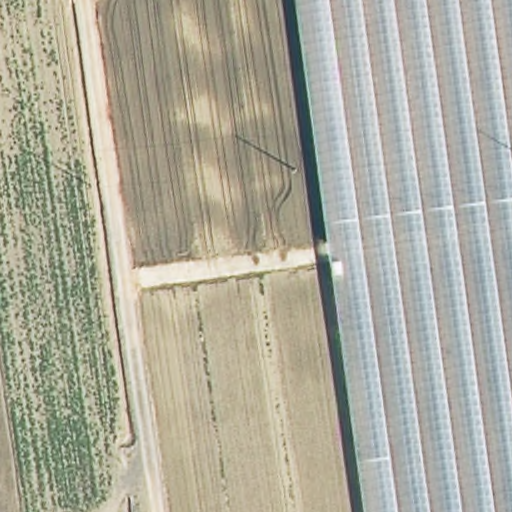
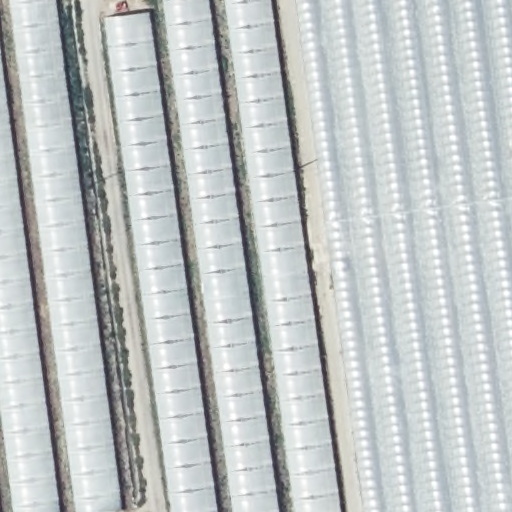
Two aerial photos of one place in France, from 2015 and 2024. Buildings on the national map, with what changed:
new [(120,511),(114,512),(0,512),(0,0),(57,0),(120,511)]
new [(177,512),(107,17),(160,8),(159,0),(268,0),(339,512),(177,512)]
unchanged [(512,512),(364,512),(295,0),(512,0),(512,512)]

